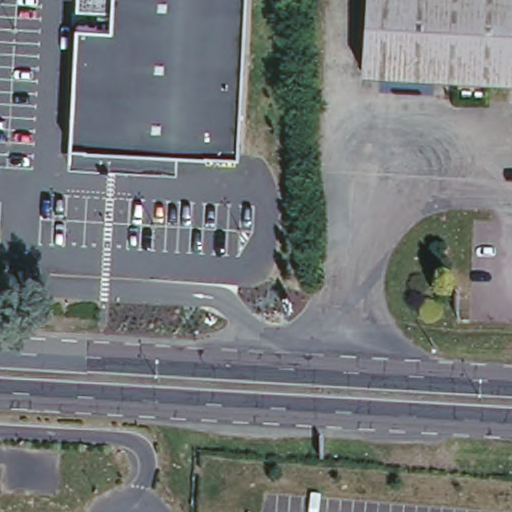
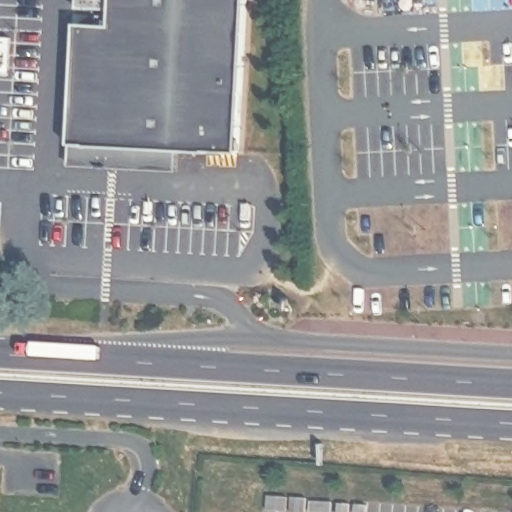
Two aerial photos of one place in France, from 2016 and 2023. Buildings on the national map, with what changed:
unchanged [(70,142),(77,24),(112,26),(113,0),(244,0),(235,154),(177,150),(176,170),(69,165),(70,142)]
demolished [(512,79),(366,71),(370,0),(512,0),(512,79)]

